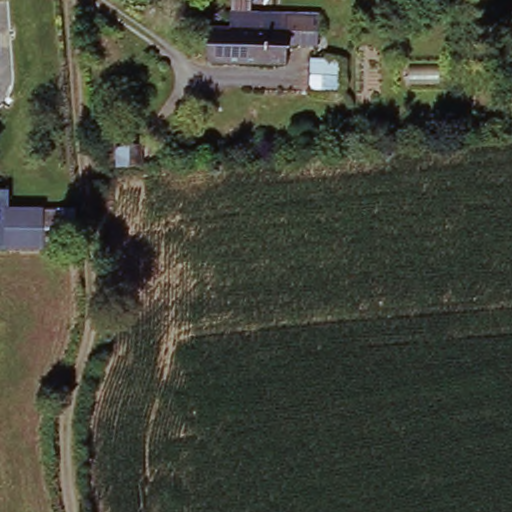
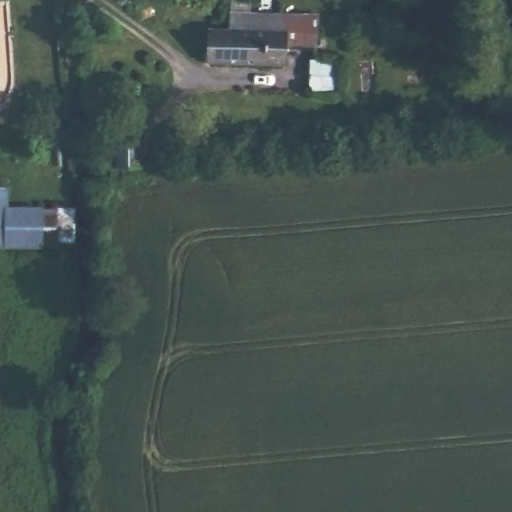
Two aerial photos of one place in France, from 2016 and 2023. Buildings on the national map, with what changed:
unchanged [(219,27),(233,27),(234,14),(324,15),(326,42),(292,42),(292,64),(216,61),(219,27)]
unchanged [(124,145),(153,144),(153,168),(124,170),(124,145)]
unchanged [(0,193),(8,194),(8,211),(54,207),(54,246),(0,250),(0,193)]

